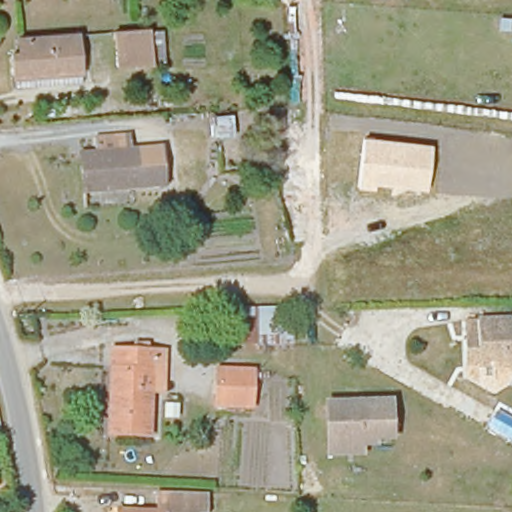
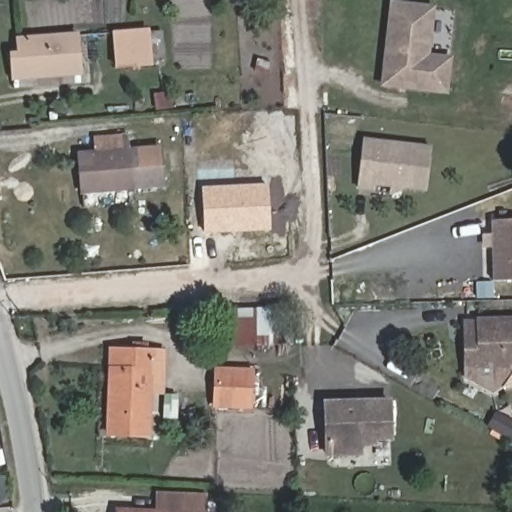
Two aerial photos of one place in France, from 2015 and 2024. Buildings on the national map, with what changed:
new [(449,94),(381,86),(390,0),(436,5),(431,53),(453,55),(449,94)]
unchanged [(155,34),(157,66),(123,70),(121,37),(155,34)]
unchanged [(10,76),(8,52),(16,52),(15,39),(75,38),(77,75),(77,85),(59,86),(29,86),(10,86),(10,76)]
unchanged [(165,186),(86,196),(83,157),(99,155),(98,141),(121,138),(134,136),(135,152),(161,149),(165,186)]
unchanged [(433,145),(428,189),(408,187),(391,195),(391,186),(377,185),(376,191),(358,189),(364,137),(433,145)]
new [(269,183),(271,229),(204,232),(202,187),(269,183)]
new [(491,220),(512,219),(512,280),(493,280),(491,220)]
unchanged [(207,346),(208,311),(292,310),(296,342),(207,346)]
unchanged [(473,344),(472,323),(483,322),(512,322),(512,367),(473,368),(473,344)]
unchanged [(103,437),(108,352),(146,353),(159,353),(157,394),(146,394),(145,436),(103,437)]
unchanged [(247,370),(246,404),(213,405),(214,369),(247,370)]
unchanged [(386,435),(370,436),(371,441),(356,441),(355,452),(323,454),(322,403),(385,400),(386,435)]
new [(512,407),(512,444),(490,433),(505,403),(512,407)]
unchanged [(166,496),(203,496),(202,512),(152,512),(153,496),(166,496)]

